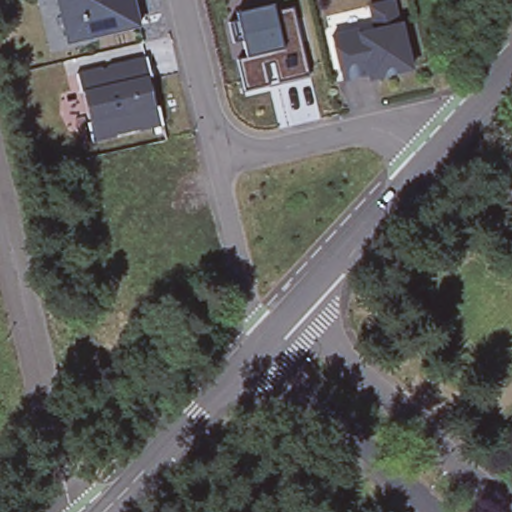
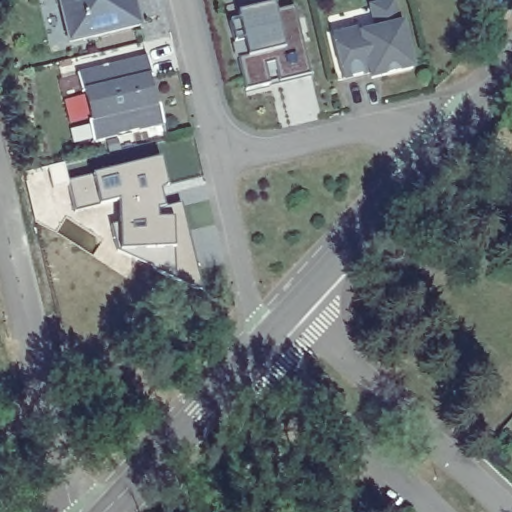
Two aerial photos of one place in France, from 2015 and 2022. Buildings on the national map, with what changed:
unchanged [(70,41),(60,0),(135,0),(141,25),(70,41)]
unchanged [(370,73),(343,79),(332,36),(357,31),(359,31),(360,31),(362,34),(377,30),(371,6),(394,1),(400,25),(402,24),(413,69),(382,76),(372,78),(370,73)]
unchanged [(247,93),(239,61),(249,57),(245,41),(236,45),(231,24),(240,21),(240,16),(275,7),(278,15),(295,10),(311,76),(247,93)]
unchanged [(152,76),(150,76),(157,106),(160,105),(164,124),(143,129),(143,128),(140,128),(140,130),(93,141),(89,121),(92,121),(85,91),(82,92),(77,73),(102,67),(102,70),(110,68),(109,66),(148,56),(152,76)]
new [(112,226),(120,225),(120,202),(102,205),(75,210),(70,182),(93,176),(162,160),(168,189),(160,193),(163,209),(182,206),(202,295),(152,271),(154,267),(118,252),(112,226)]

